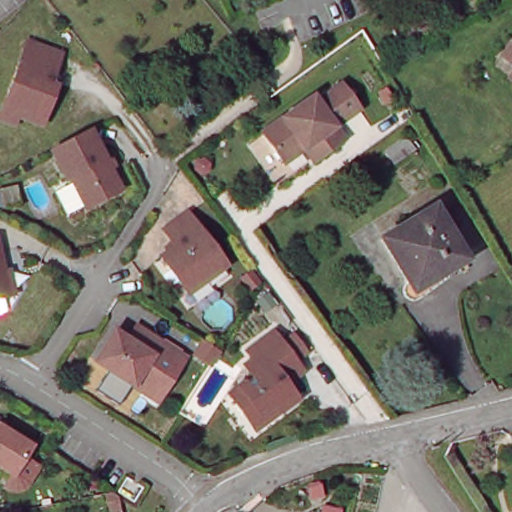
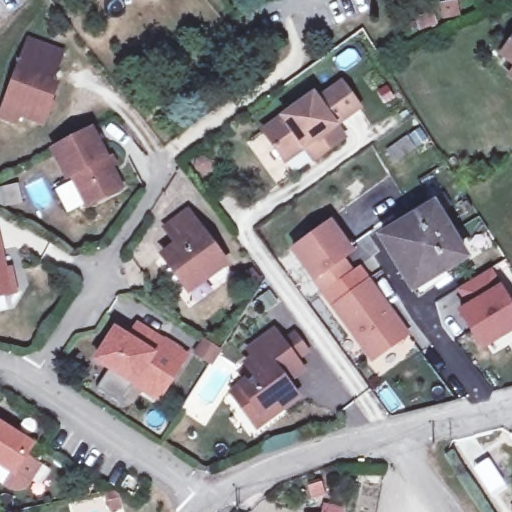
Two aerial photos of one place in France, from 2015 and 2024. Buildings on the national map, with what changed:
unchanged [(1,115),(4,106),(29,38),(63,49),(53,78),(59,80),(44,121),(19,111),(16,121),(1,115)]
unchanged [(343,141),(313,161),(304,149),(282,163),(261,129),(313,95),(316,101),(342,85),(359,112),(334,128),(343,141)]
unchanged [(93,132),(124,192),(89,208),(74,179),(69,182),(54,152),(93,132)]
unchanged [(228,259),(189,286),(163,249),(177,239),(166,223),(190,207),(228,259)]
unchanged [(409,283),(382,238),(433,208),(464,260),(447,271),(414,290),(409,283)]
new [(328,226),(349,255),(339,262),(349,275),(321,295),(291,253),(328,226)]
unchanged [(18,285),(11,287),(0,289),(0,238),(6,265),(13,263),(18,285)]
new [(512,307),(512,330),(483,348),(462,313),(471,307),(460,288),(490,270),(512,307)]
new [(366,285),(404,338),(369,363),(331,309),(366,285)]
unchanged [(152,395),(102,363),(123,333),(136,342),(144,329),(166,343),(191,360),(173,388),(163,402),(152,395)]
unchanged [(245,417),(231,397),(254,380),(246,368),(254,362),(248,353),(274,335),(298,369),(301,374),(286,386),(296,401),(282,412),(256,432),(245,417)]
unchanged [(33,446),(14,474),(0,465),(0,424),(33,446)]
unchanged [(321,490),(308,494),(305,485),(317,481),(321,490)]
unchanged [(109,490),(120,497),(124,511),(118,512),(106,512),(101,491),(109,490)]
unchanged [(328,507),(343,511),(342,512),(326,512),(328,507)]

